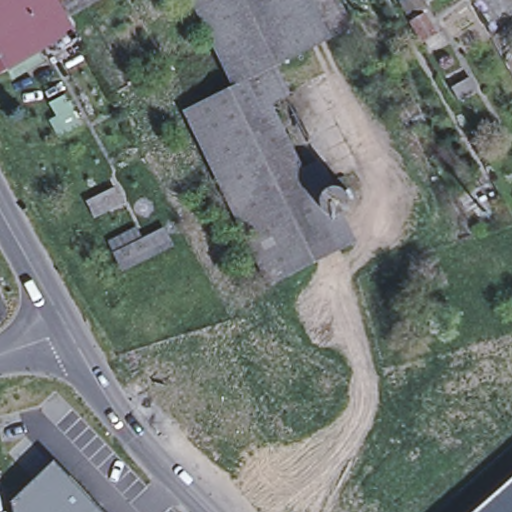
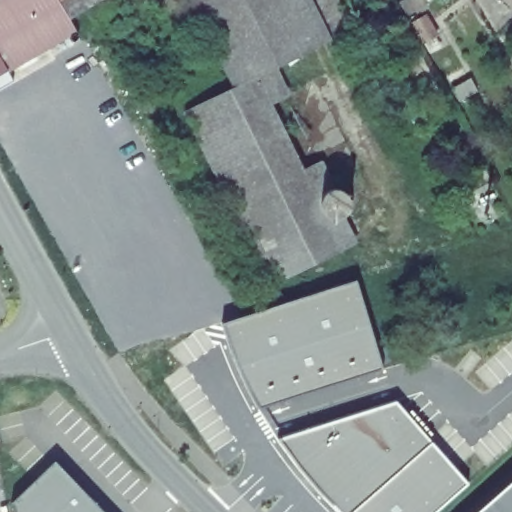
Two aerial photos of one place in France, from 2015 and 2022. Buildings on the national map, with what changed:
unchanged [(87,7),(67,19),(75,33),(0,75),(0,0),(100,0),(87,7)]
unchanged [(163,7),(159,0),(177,0),(163,7)]
unchanged [(192,0),(340,0),(355,26),(301,53),(258,74),(343,247),(268,283),(183,110),(235,85),(234,84),(192,0)]
unchanged [(425,16),(436,37),(422,45),(410,24),(425,16)]
unchanged [(322,200),(325,194),(330,190),(336,187),(343,187),(348,190),(352,196),(354,202),(352,208),(349,213),(341,218),(335,218),(329,215),(324,208),(322,200)]
new [(382,369),(259,407),(243,378),(234,357),(227,338),(223,323),(356,281),(382,369)]
new [(435,512),(338,512),(330,504),(306,478),(286,453),(276,439),(395,401),(469,483),(435,512)]
unchanged [(13,512),(11,503),(55,461),(104,512),(13,512)]
unchanged [(475,512),(512,479),(512,512),(475,512)]

